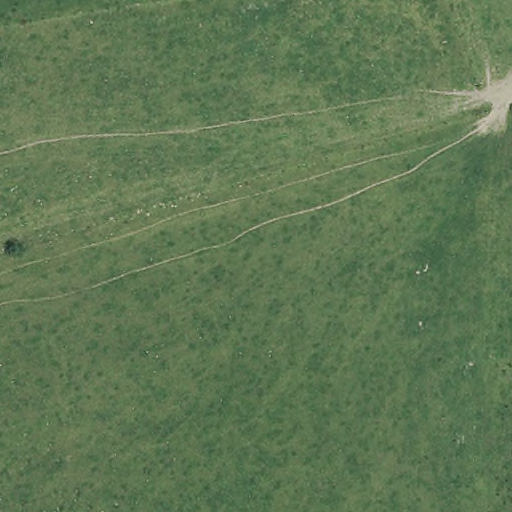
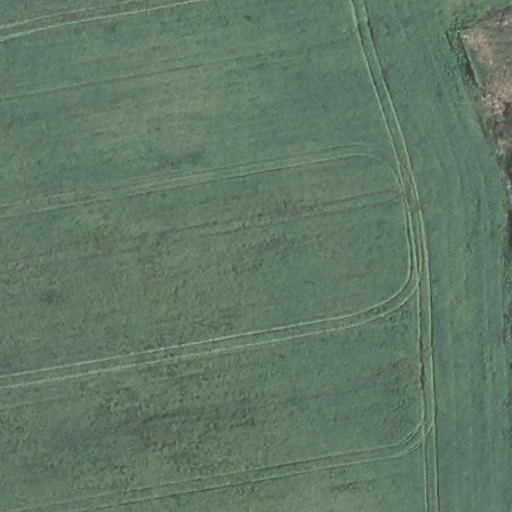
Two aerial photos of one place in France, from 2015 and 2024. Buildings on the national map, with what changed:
[]

